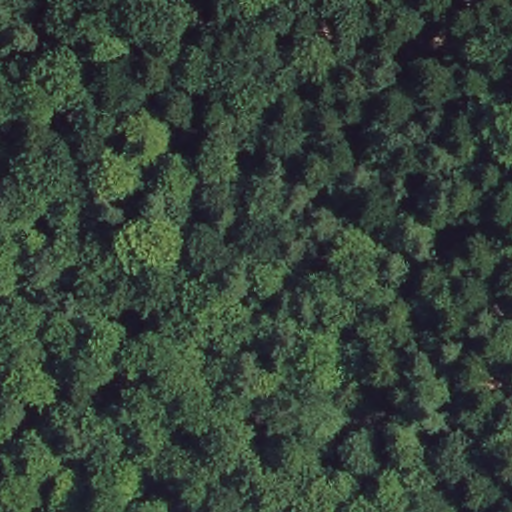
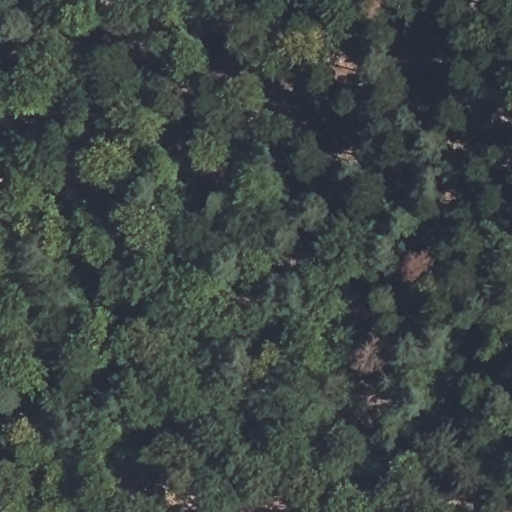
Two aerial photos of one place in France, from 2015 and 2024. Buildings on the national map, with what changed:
[]

